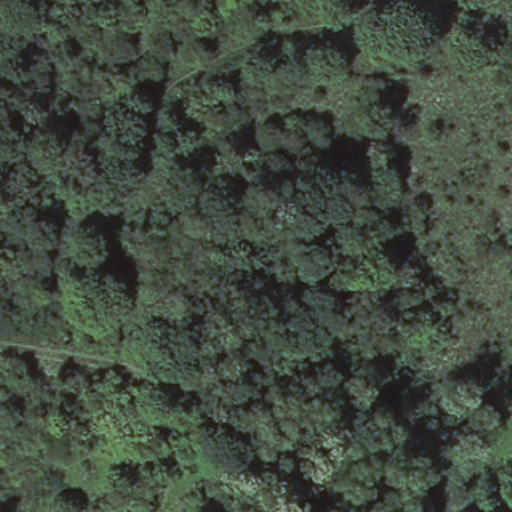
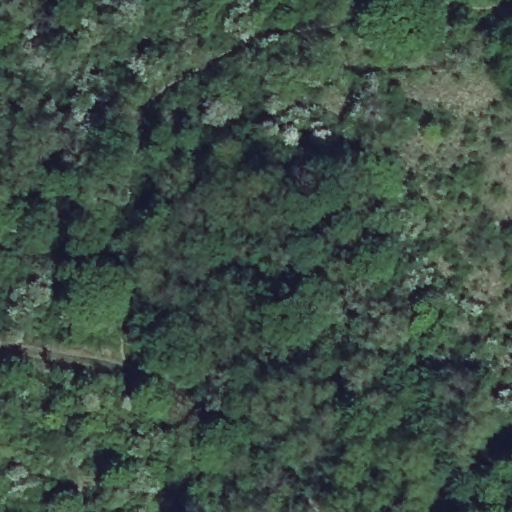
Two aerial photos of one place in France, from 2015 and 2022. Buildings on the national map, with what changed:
[]

